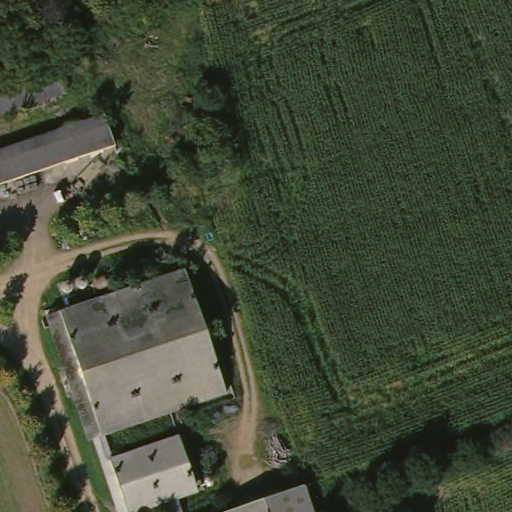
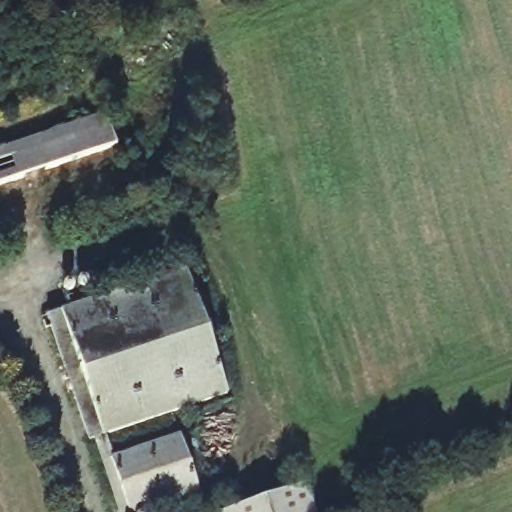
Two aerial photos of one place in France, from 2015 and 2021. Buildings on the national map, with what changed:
unchanged [(72,90),(0,115),(0,92),(65,69),(72,90)]
unchanged [(109,115),(118,143),(0,184),(0,153),(109,115)]
unchanged [(194,261),(236,388),(110,430),(118,454),(187,432),(205,488),(184,495),(190,512),(181,512),(176,497),(132,512),(129,512),(103,433),(97,435),(55,307),(194,261)]
unchanged [(317,512),(212,512),(307,481),(317,512)]

